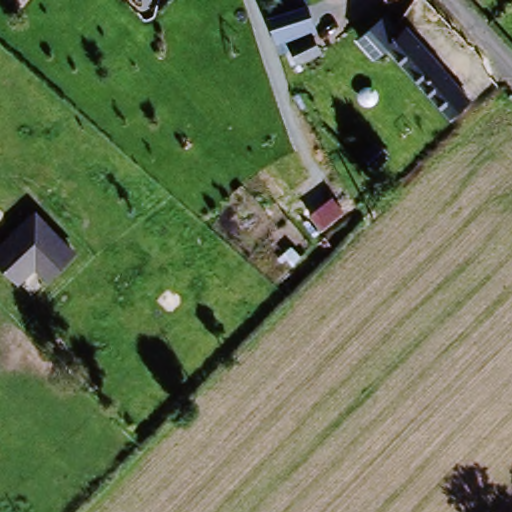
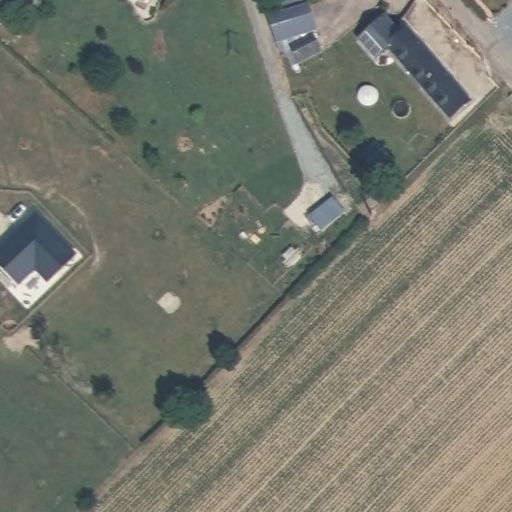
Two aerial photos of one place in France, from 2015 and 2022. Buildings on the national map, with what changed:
unchanged [(312,39),(319,55),(296,65),(291,50),(276,53),(264,10),(296,0),(303,0),(318,37),(312,39)]
unchanged [(389,35),(409,50),(414,45),(461,90),(484,111),(464,129),(398,62),(384,75),(367,58),(389,35)]
unchanged [(36,270),(18,288),(0,270),(0,255),(36,220),(75,260),(50,285),(36,270)]

